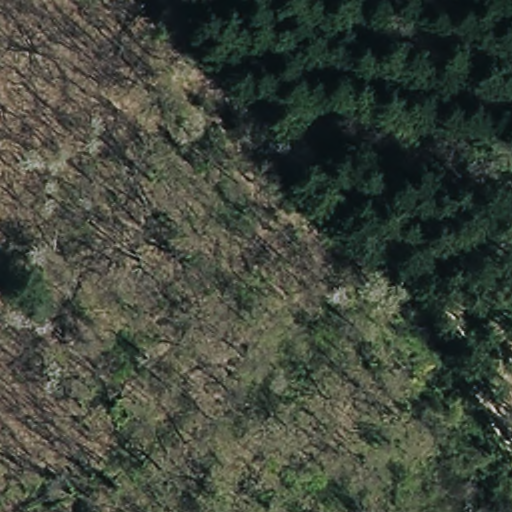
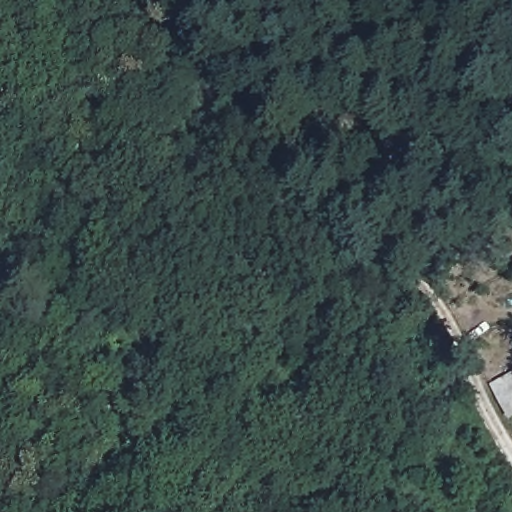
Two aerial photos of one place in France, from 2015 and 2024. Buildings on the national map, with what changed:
new [(487,383),(512,372),(512,418),(509,420),(487,383)]

